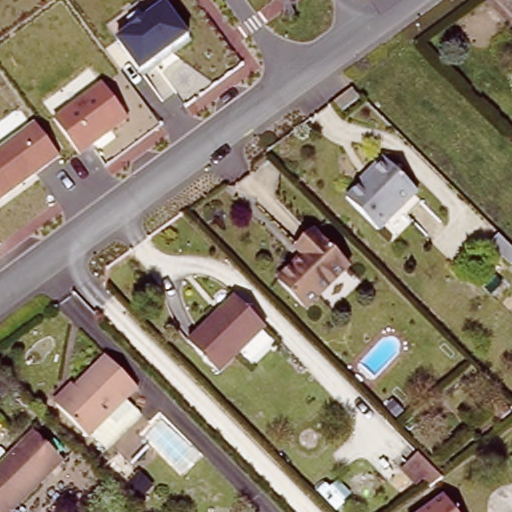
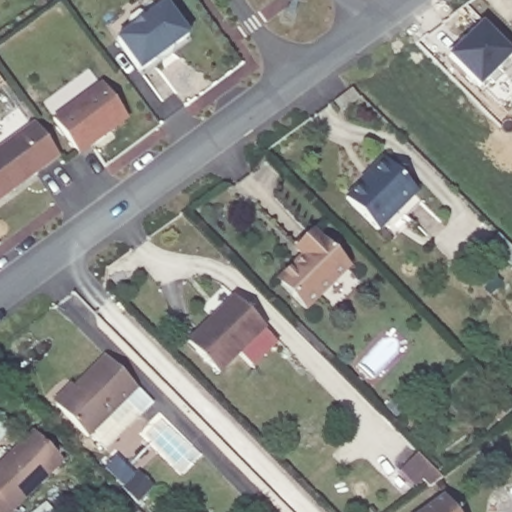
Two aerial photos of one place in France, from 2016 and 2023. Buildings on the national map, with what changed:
unchanged [(190,39),(141,72),(116,42),(166,6),(190,39)]
new [(480,89),(448,57),(483,22),(512,53),(512,57),(480,89)]
unchanged [(129,119),(80,155),(54,120),(100,82),(129,119)]
unchanged [(351,93),(354,96),(361,102),(342,115),(333,106),(351,93)]
unchanged [(0,203),(0,149),(34,124),(61,157),(0,203)]
unchanged [(409,215),(402,207),(381,227),(349,196),(372,174),(367,169),(384,154),(419,190),(417,192),(424,200),(409,215)]
unchanged [(309,309),(281,281),(306,257),(299,250),(294,244),(311,227),(316,232),(353,268),(309,309)]
unchanged [(512,251),(512,265),(491,244),(498,237),(512,251)]
unchanged [(238,293),(270,326),(221,372),(189,340),(238,293)]
unchanged [(99,356),(130,387),(119,397),(135,412),(100,447),(98,449),(88,441),(81,434),(79,433),(63,417),(49,403),(53,400),(99,356)]
unchanged [(59,460),(9,510),(0,500),(0,463),(31,432),(59,460)]
new [(421,455),(443,478),(431,487),(425,481),(419,487),(404,472),(409,466),(421,455)]
unchanged [(420,512),(444,496),(457,512),(420,512)]

